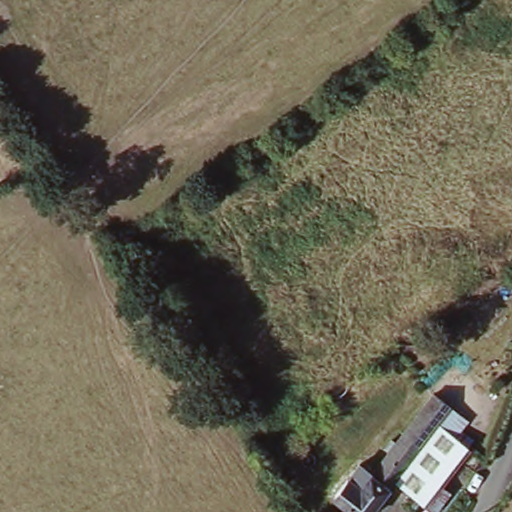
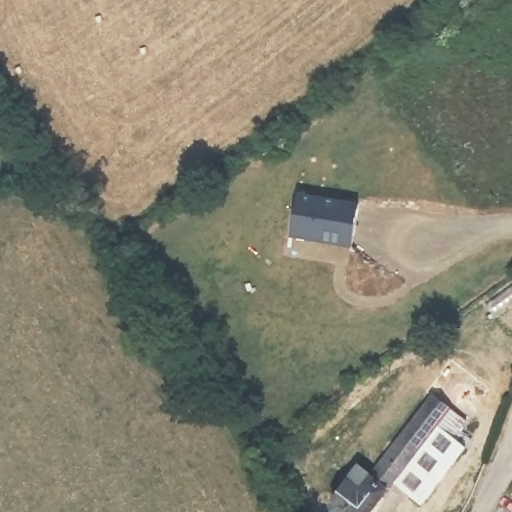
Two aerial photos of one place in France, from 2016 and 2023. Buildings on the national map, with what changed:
new [(299,195),(360,205),(352,245),(292,235),(299,195)]
unchanged [(347,472),(366,484),(431,398),(448,412),(390,487),(371,512),(336,512),(329,507),(343,487),(338,484),(347,472)]
unchanged [(460,422),(446,441),(462,452),(434,488),(447,498),(436,512),(425,512),(390,487),(448,412),(460,422)]

